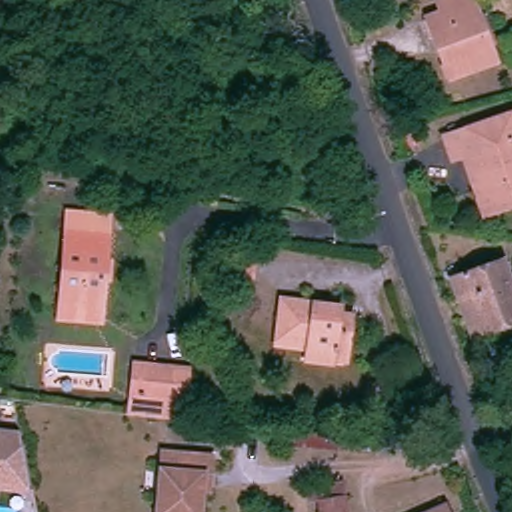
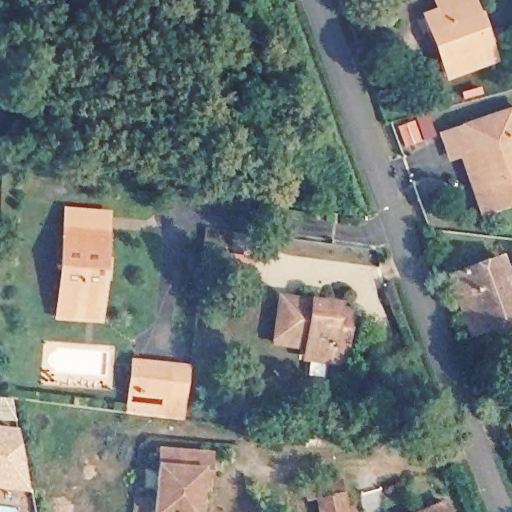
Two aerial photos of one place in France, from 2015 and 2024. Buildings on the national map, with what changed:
unchanged [(476,0),(481,0),(501,59),(457,72),(453,59),(444,28),(439,14),(476,0)]
unchanged [(462,158),(448,163),(437,134),(512,109),(512,209),(484,219),(462,158)]
unchanged [(60,319),(68,207),(112,208),(106,323),(60,319)]
unchanged [(224,282),(228,257),(254,260),(251,285),(224,282)]
unchanged [(468,271),(507,258),(512,271),(512,319),(488,327),(478,332),(458,275),(468,271)]
unchanged [(276,334),(281,293),(337,300),(337,306),(350,308),(345,344),(332,342),(331,352),(306,349),(308,339),(276,334)]
unchanged [(133,402),(137,364),(179,369),(194,371),(190,409),(175,407),(133,402)]
unchanged [(21,433),(31,488),(2,484),(0,484),(0,430),(21,433)]
unchanged [(336,451),(297,447),(281,445),(283,430),(294,431),(337,435),(336,451)]
unchanged [(162,447),(212,451),(211,469),(210,484),(202,484),(200,512),(157,512),(162,447)]
unchanged [(305,481),(342,475),(348,512),(310,512),(305,481)]
unchanged [(452,497),(457,512),(415,512),(452,497)]

